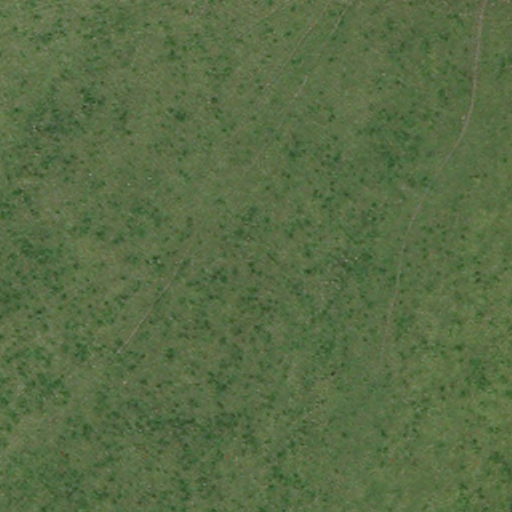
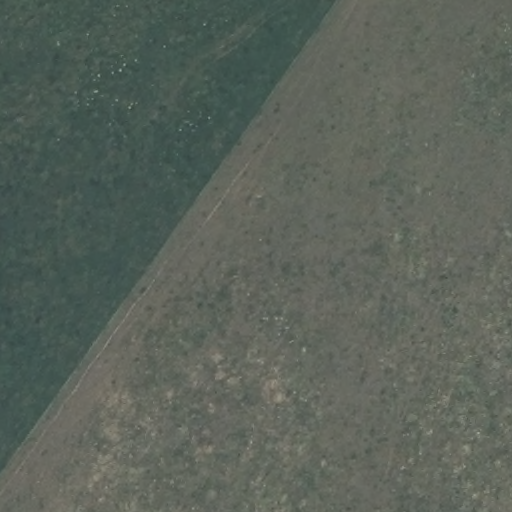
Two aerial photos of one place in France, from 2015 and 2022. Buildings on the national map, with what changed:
[]

